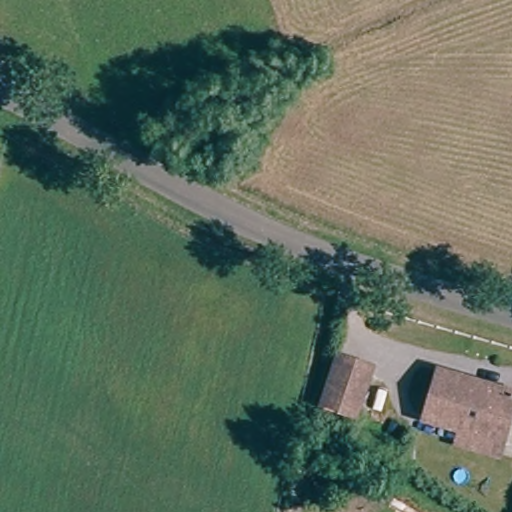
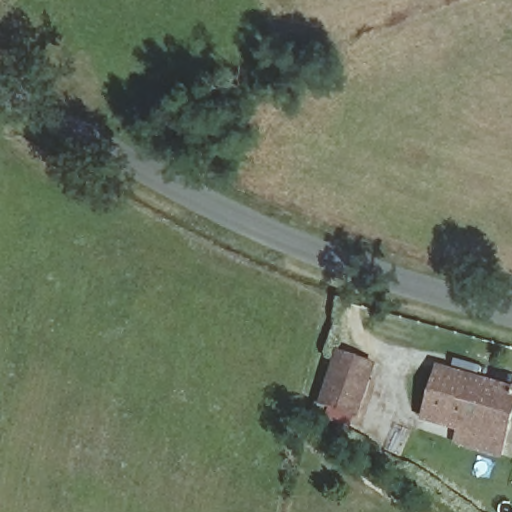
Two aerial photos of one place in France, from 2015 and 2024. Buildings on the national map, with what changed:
unchanged [(356,411),(325,401),(338,355),(370,365),(356,411)]
unchanged [(503,440),(428,420),(440,373),(512,393),(512,407),(503,440)]

